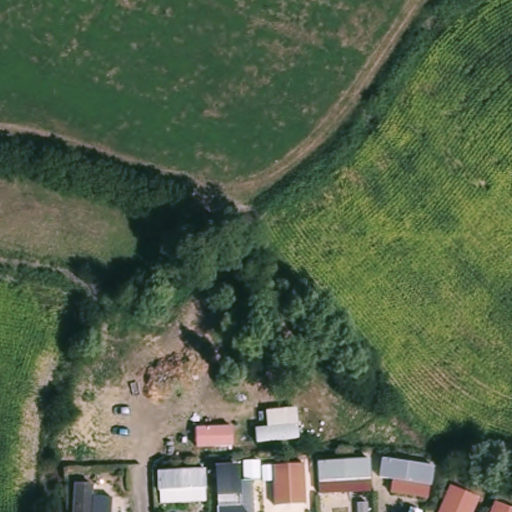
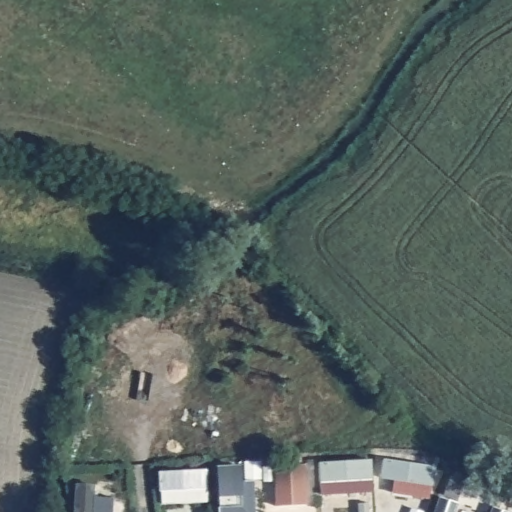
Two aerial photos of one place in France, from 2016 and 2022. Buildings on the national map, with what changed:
[]

